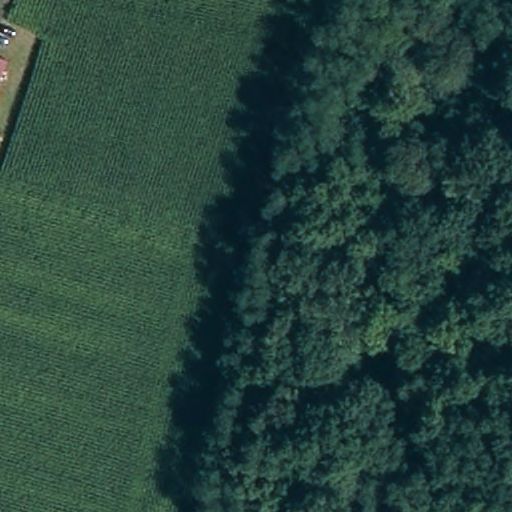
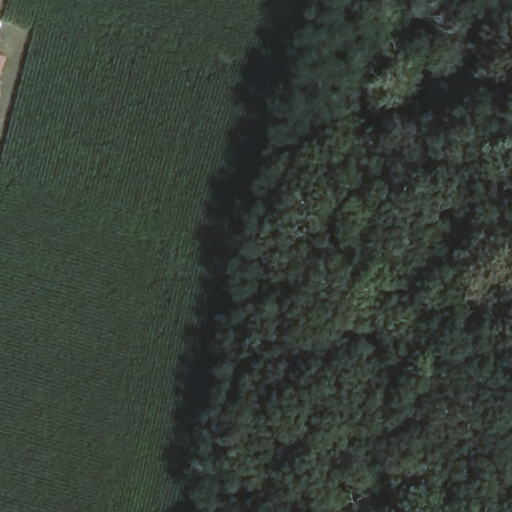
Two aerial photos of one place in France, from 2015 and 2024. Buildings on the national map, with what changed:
unchanged [(3,59),(0,68),(0,57),(3,59)]

